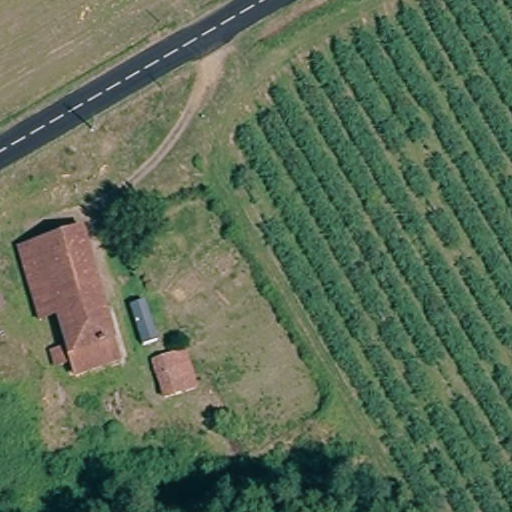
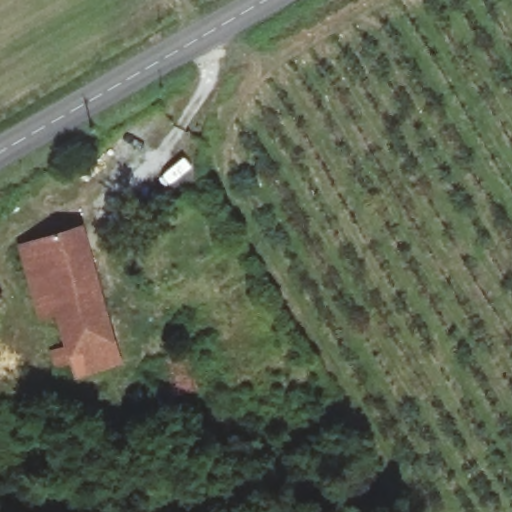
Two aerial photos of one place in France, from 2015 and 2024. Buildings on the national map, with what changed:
unchanged [(116,362),(71,373),(64,358),(51,362),(45,346),(59,342),(44,275),(25,279),(17,245),(81,226),(116,362)]
unchanged [(0,301),(2,304),(0,305),(0,301)]
unchanged [(152,358),(182,347),(196,387),(161,397),(152,358)]

